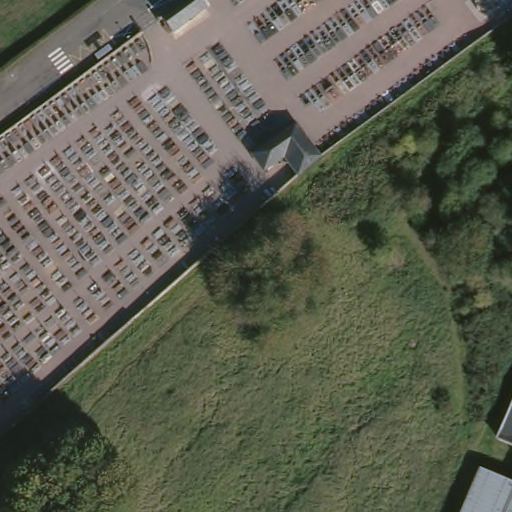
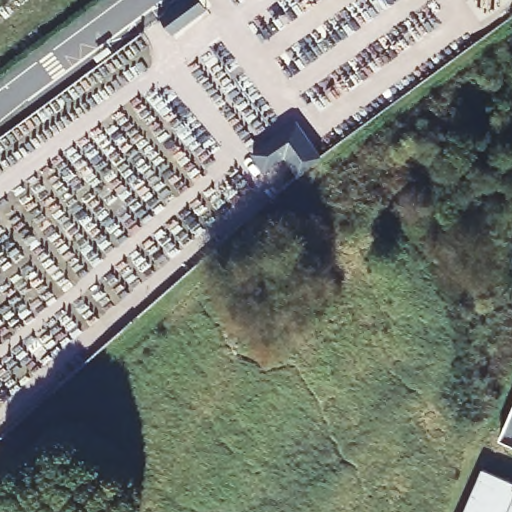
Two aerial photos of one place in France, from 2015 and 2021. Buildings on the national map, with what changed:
unchanged [(175,9),(186,0),(200,0),(210,12),(201,19),(188,27),(175,35),(162,19),(175,9)]
unchanged [(303,177),(289,160),(264,179),(252,161),(276,143),(296,128),(321,162),(303,177)]
unchanged [(499,446),(512,415),(512,451),(499,446)]
unchanged [(481,476),(512,488),(512,512),(466,512),(481,476)]

